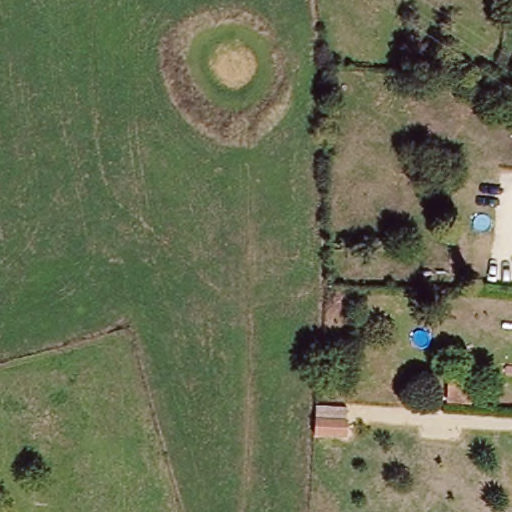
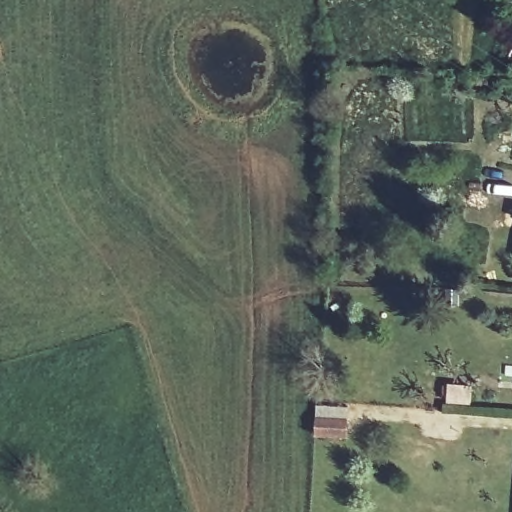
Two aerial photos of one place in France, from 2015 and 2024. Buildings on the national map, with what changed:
unchanged [(472,401),(461,400),(449,399),(449,381),(461,382),(474,384),(472,401)]
unchanged [(349,427),(318,426),(319,409),(349,412),(349,427)]

